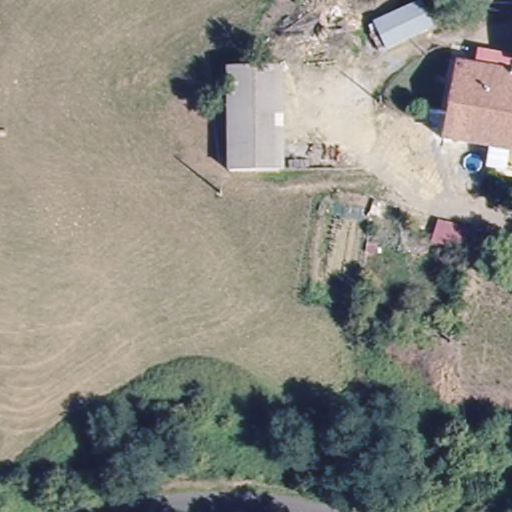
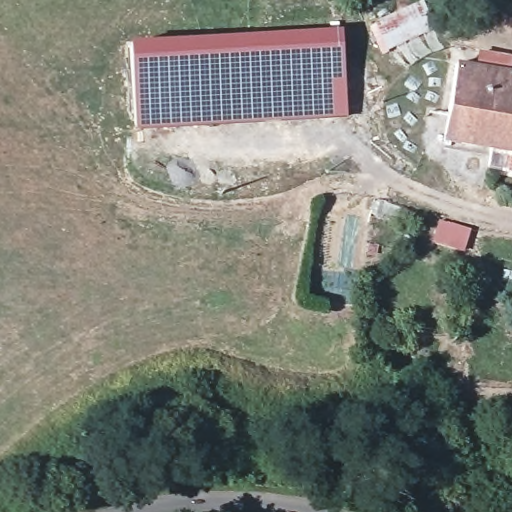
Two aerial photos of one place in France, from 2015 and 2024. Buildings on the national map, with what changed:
unchanged [(407,0),(424,0),(434,22),(380,49),(368,21),(407,0)]
new [(129,44),(341,31),(345,118),(135,132),(129,44)]
unchanged [(505,147),(439,137),(447,65),(488,70),(489,55),(505,57),(505,63),(512,64),(512,177),(503,176),(505,147)]
unchanged [(438,232),(442,216),(480,223),(476,242),(453,237),(438,232)]

